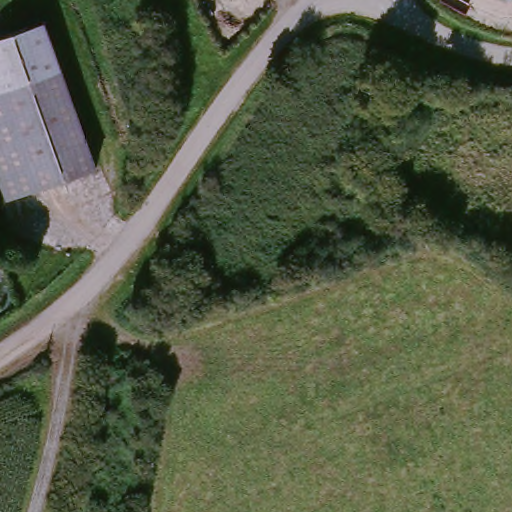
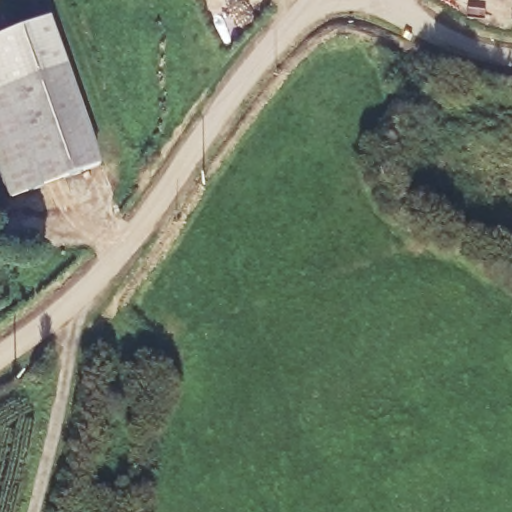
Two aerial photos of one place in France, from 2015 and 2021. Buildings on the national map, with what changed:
unchanged [(0,36),(46,19),(61,66),(0,91),(0,36)]
unchanged [(101,165),(8,201),(0,178),(0,91),(61,66),(101,165)]

